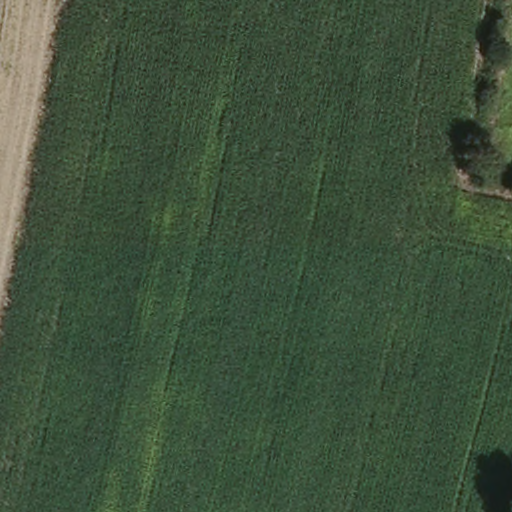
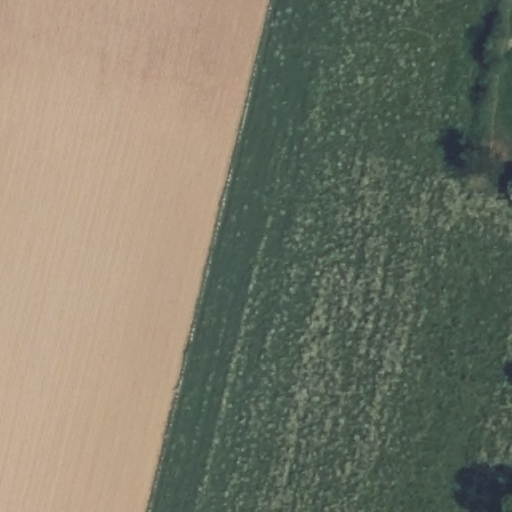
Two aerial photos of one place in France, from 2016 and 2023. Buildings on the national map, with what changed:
[]

